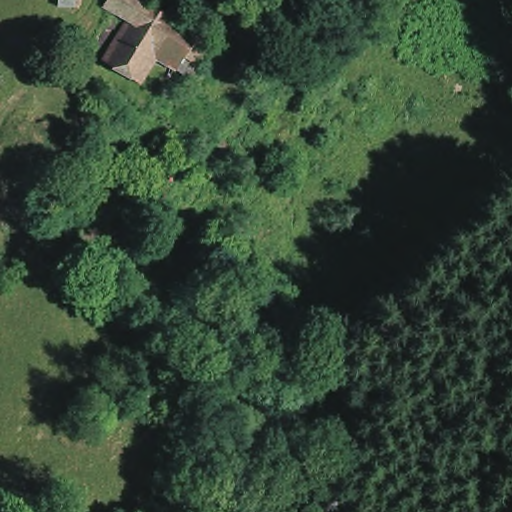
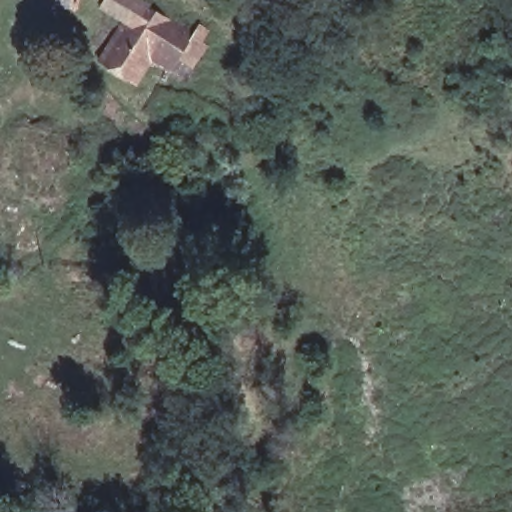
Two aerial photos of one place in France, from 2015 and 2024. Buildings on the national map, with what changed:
unchanged [(52,5),(52,0),(70,0),(70,6),(52,5)]
unchanged [(149,53),(131,81),(97,58),(124,18),(100,3),(101,0),(144,0),(192,28),(197,20),(206,26),(199,38),(204,41),(191,63),(183,75),(169,66),(149,53)]

